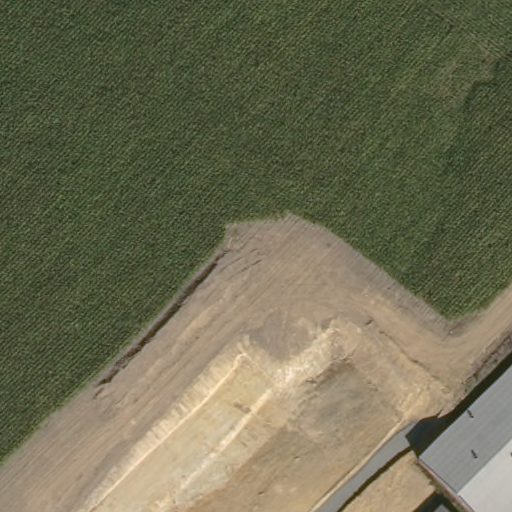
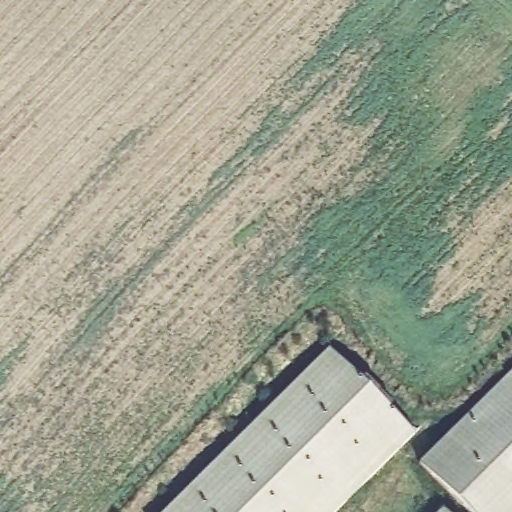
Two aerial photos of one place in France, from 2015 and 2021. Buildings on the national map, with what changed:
new [(335,512),(164,512),(328,348),(412,432),(335,512)]
unchanged [(512,370),(512,512),(469,512),(419,462),(512,370)]

